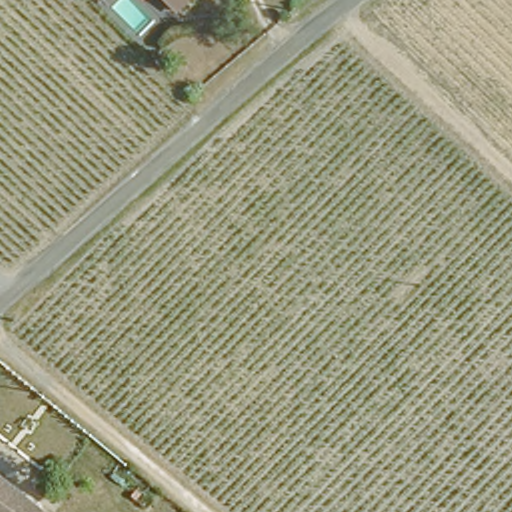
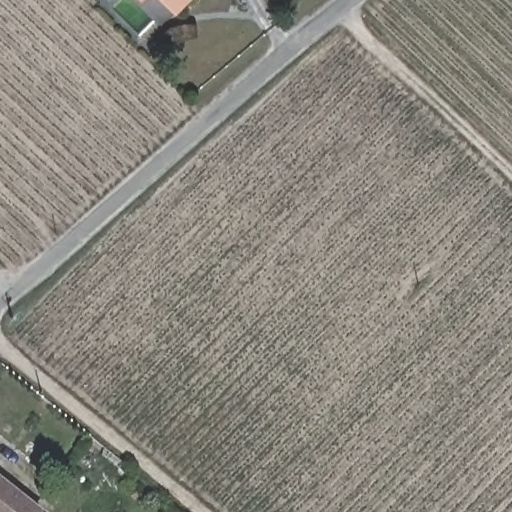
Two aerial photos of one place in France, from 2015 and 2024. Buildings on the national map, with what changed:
unchanged [(171,3),(168,0),(175,0),(171,3)]
unchanged [(45,511),(44,512),(0,512),(0,474),(45,511)]

